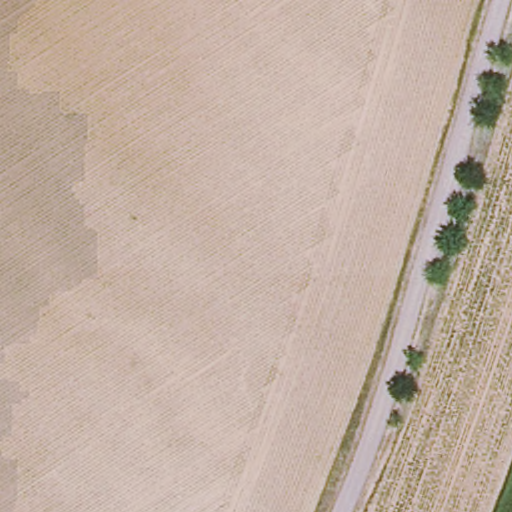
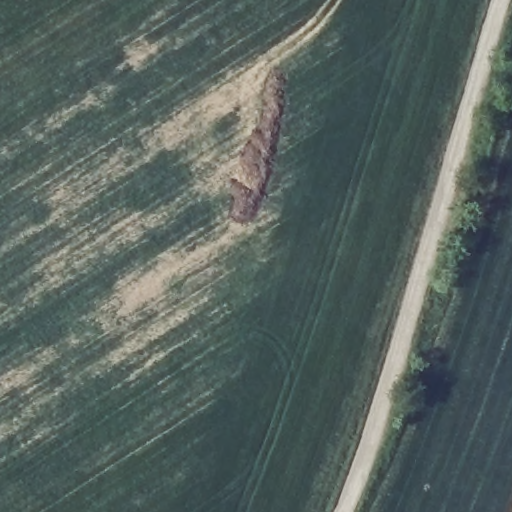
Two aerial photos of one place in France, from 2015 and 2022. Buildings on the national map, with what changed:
[]

